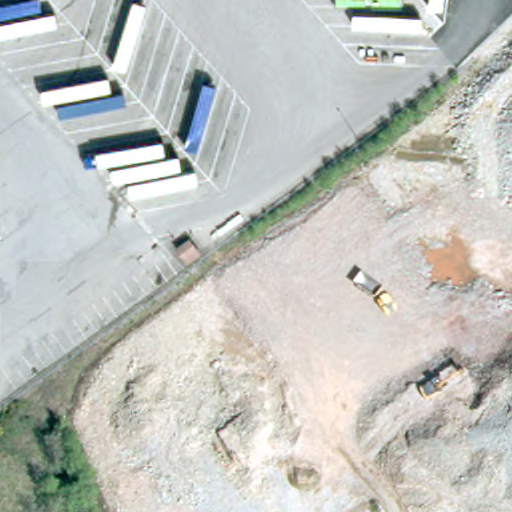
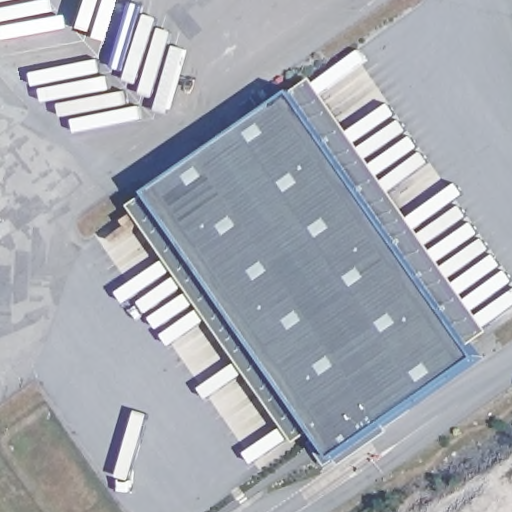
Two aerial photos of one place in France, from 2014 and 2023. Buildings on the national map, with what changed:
new [(151,192),(295,92),(314,80),(492,333),(473,347),(481,358),(388,425),(391,431),(343,465),(339,458),(329,466),(313,444),(323,438),(316,431),(299,443),(133,205),(151,192)]

